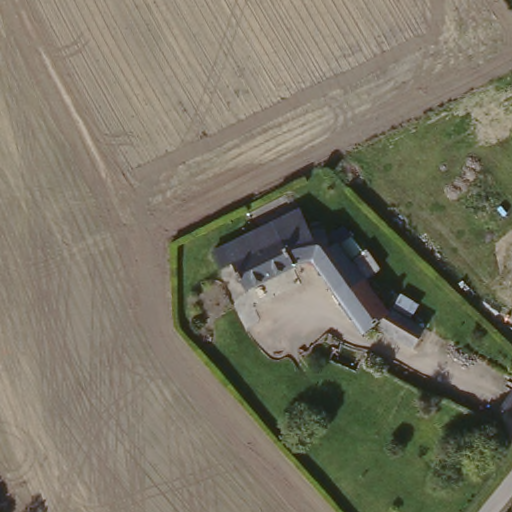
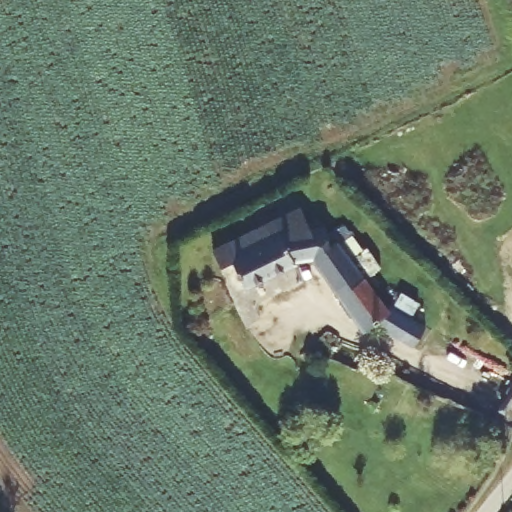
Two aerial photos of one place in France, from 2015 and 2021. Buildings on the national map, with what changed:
unchanged [(214,292),(201,277),(246,229),(263,244),(266,247),(226,283),(214,292)]
unchanged [(303,265),(287,266),(245,305),(226,283),(266,247),(281,236),(323,231),(325,235),(333,242),(327,250),(374,317),(405,333),(401,351),(363,335),(355,337),(303,265)]

